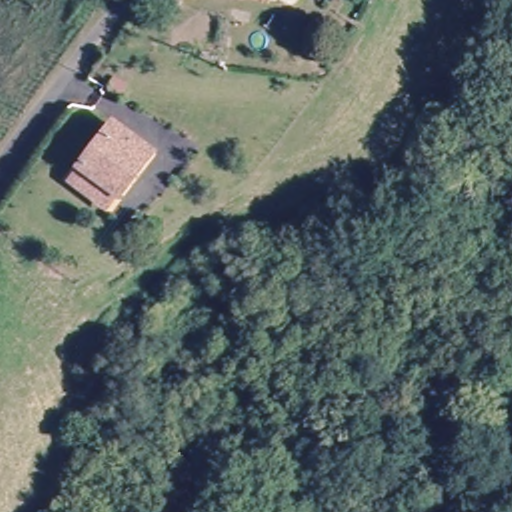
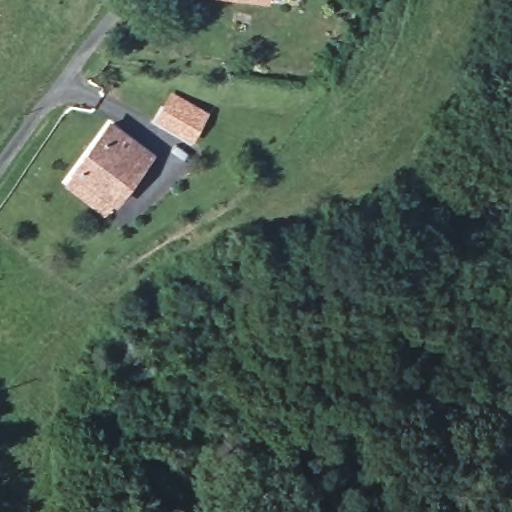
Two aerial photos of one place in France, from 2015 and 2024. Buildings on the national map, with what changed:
new [(212,112),(194,144),(155,123),(172,91),(212,112)]
unchanged [(54,178),(64,163),(96,114),(140,143),(107,192),(97,207),(54,178)]

